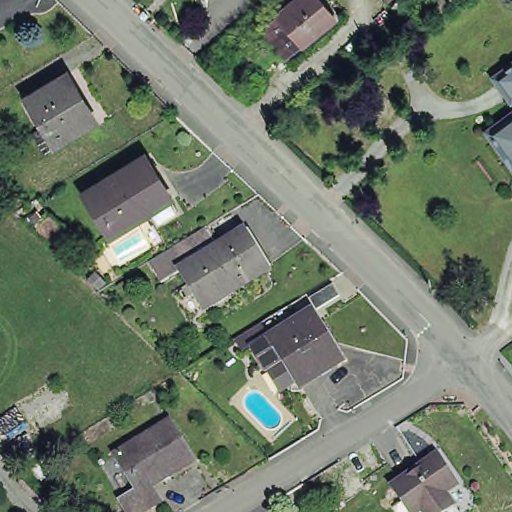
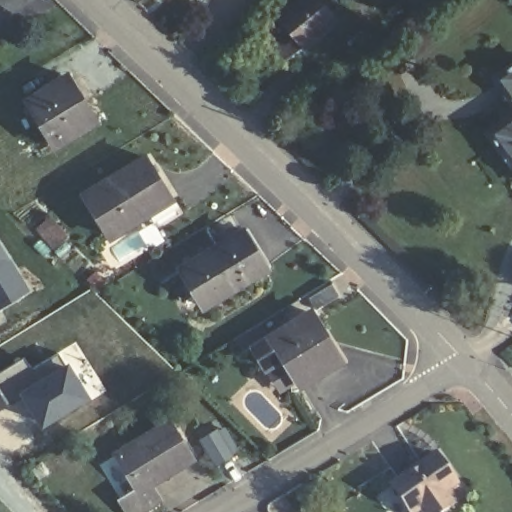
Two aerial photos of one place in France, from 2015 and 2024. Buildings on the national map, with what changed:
unchanged [(261,22),(275,12),(290,0),(318,0),(331,17),(336,22),(289,59),(285,53),(261,22)]
unchanged [(512,70),(512,102),(510,104),(495,82),(512,70)]
unchanged [(89,120),(50,144),(22,96),(61,73),(89,120)]
unchanged [(512,116),(512,165),(489,132),(512,116)]
unchanged [(144,153),(169,195),(110,231),(85,189),(144,153)]
new [(41,237),(33,228),(51,213),(70,237),(45,258),(32,245),(41,237)]
unchanged [(212,227),(224,247),(189,268),(170,280),(158,260),(212,227)]
unchanged [(224,247),(251,231),(273,270),(212,307),(189,268),(224,247)]
new [(30,289),(0,308),(0,241),(30,289)]
unchanged [(347,296),(325,310),(318,298),(340,285),(347,296)]
unchanged [(263,348),(280,338),(320,313),(348,360),(308,385),(290,355),(272,365),(263,348)]
new [(24,355),(39,376),(18,392),(20,397),(8,405),(0,394),(0,370),(24,355)]
new [(39,376),(66,360),(91,396),(40,428),(20,397),(18,392),(39,376)]
unchanged [(127,510),(119,496),(135,486),(114,450),(167,418),(188,455),(146,479),(155,494),(127,510)]
unchanged [(396,480),(440,451),(460,480),(449,487),(458,500),(446,509),(445,507),(438,512),(432,512),(427,504),(417,511),(410,500),(396,480)]

